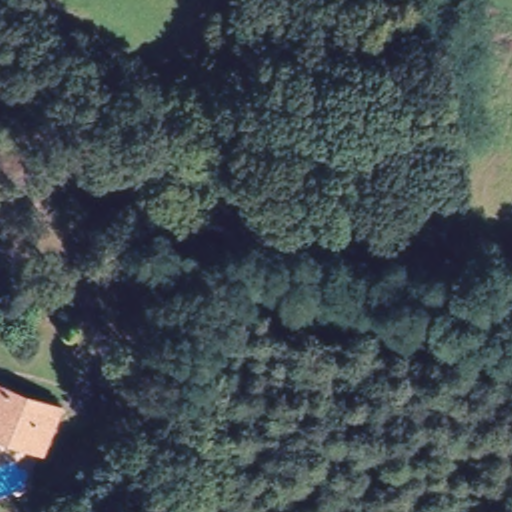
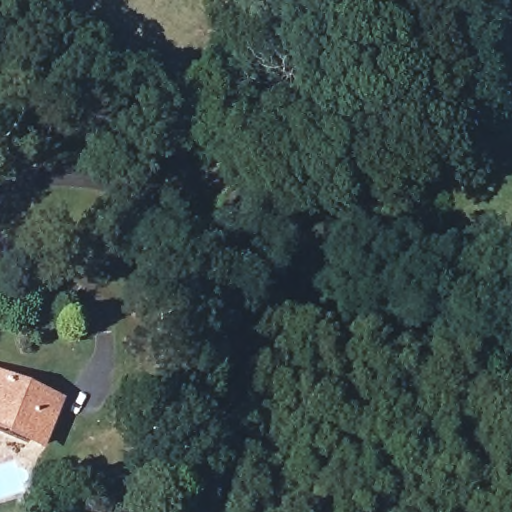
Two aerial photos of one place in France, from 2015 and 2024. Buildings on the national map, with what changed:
unchanged [(0,432),(0,383),(57,408),(48,429),(39,449),(23,442),(0,432)]

